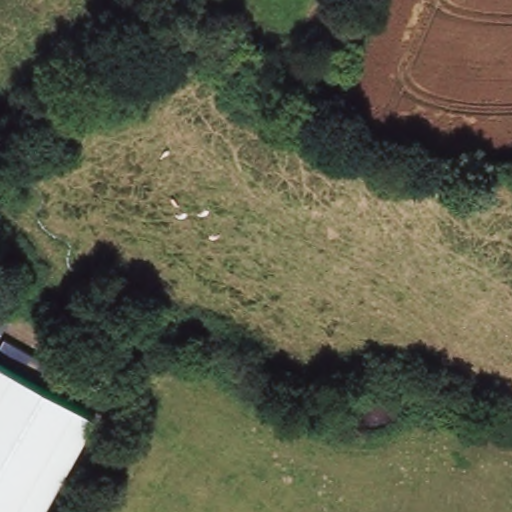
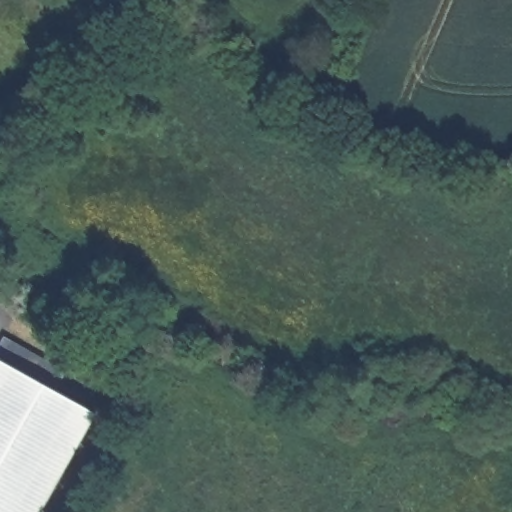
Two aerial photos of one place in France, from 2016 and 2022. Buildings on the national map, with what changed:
unchanged [(4,344),(65,377),(55,396),(95,417),(42,512),(0,512),(0,350),(4,344)]

